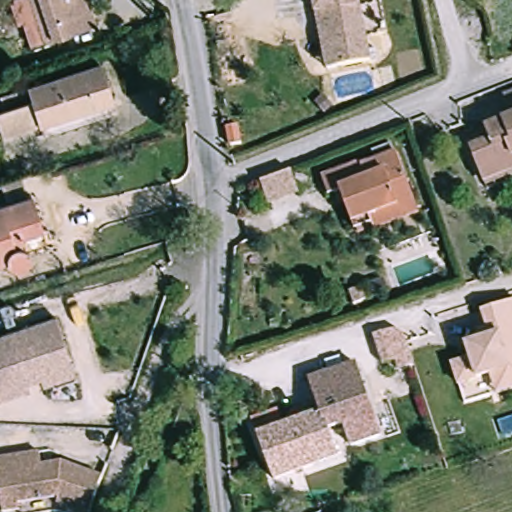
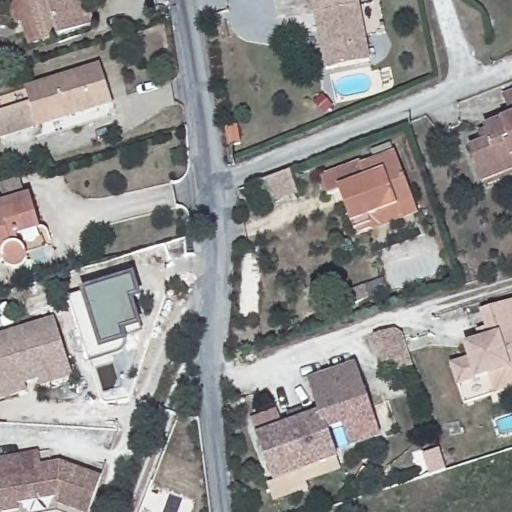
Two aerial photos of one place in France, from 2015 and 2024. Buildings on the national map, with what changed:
unchanged [(25,21),(20,23),(12,0),(83,0),(92,24),(47,40),(33,45),(25,21)]
unchanged [(314,14),(311,0),(358,0),(369,62),(346,66),(325,70),(314,14)]
unchanged [(31,85),(101,67),(111,104),(41,123),(0,134),(0,116),(37,106),(31,85)]
unchanged [(507,95),(512,93),(512,108),(507,95)]
unchanged [(486,172),(474,143),(491,136),(487,125),(512,115),(512,173),(489,181),(486,172)]
unchanged [(241,141),(228,145),(224,127),(237,124),(241,141)]
unchanged [(358,234),(355,226),(340,190),(329,194),(320,173),(361,157),(363,162),(396,149),(414,195),(420,209),(358,234)]
unchanged [(285,170),(285,171),(294,193),(265,205),(256,183),(285,170)]
unchanged [(41,223),(43,225),(51,245),(25,254),(24,264),(21,268),(19,271),(14,271),(11,271),(7,267),(4,265),(2,260),(0,261),(0,202),(25,193),(35,223),(41,223)]
new [(81,289),(135,273),(142,297),(135,300),(143,327),(125,333),(128,342),(124,350),(118,353),(91,362),(69,297),(81,289)]
unchanged [(367,294),(351,300),(346,288),(362,282),(367,294)]
unchanged [(490,374),(458,384),(452,364),(470,358),(466,345),(481,340),(478,331),(487,328),(481,311),(512,301),(512,388),(496,393),(490,374)]
unchanged [(71,369),(73,376),(41,386),(39,379),(24,384),(27,391),(0,400),(0,334),(54,317),(71,369)]
new [(398,370),(395,360),(382,364),(373,335),(395,328),(403,333),(410,355),(413,365),(398,370)]
unchanged [(341,456),(277,481),(253,419),(279,409),(286,427),(324,412),(312,380),(358,362),(385,432),(355,444),(347,422),(330,429),(341,456)]
unchanged [(0,480),(0,465),(42,455),(45,468),(64,463),(105,477),(93,512),(83,512),(61,505),(64,498),(23,508),(24,512),(8,512),(6,503),(0,480)]

